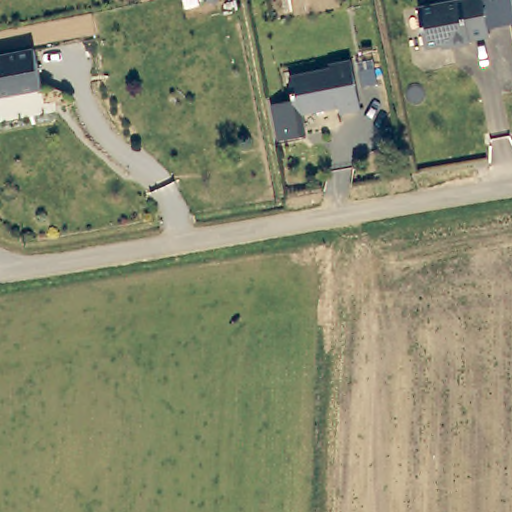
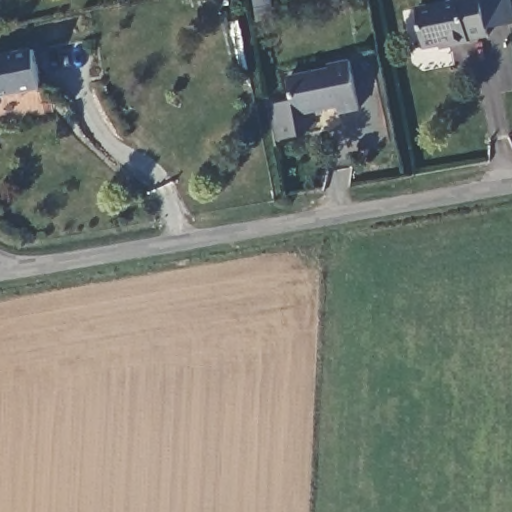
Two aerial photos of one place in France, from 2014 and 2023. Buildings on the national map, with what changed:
unchanged [(467,44),(467,47),(449,51),(448,48),(423,53),(415,14),(458,5),(457,0),(509,0),(512,17),(512,27),(507,29),(486,33),(487,40),(467,44)]
unchanged [(40,91),(0,98),(0,59),(32,53),(40,91)]
unchanged [(295,104),(291,80),(332,73),(331,68),(352,64),(361,113),(342,116),(341,110),(303,116),(307,139),(281,144),(274,108),(295,104)]

